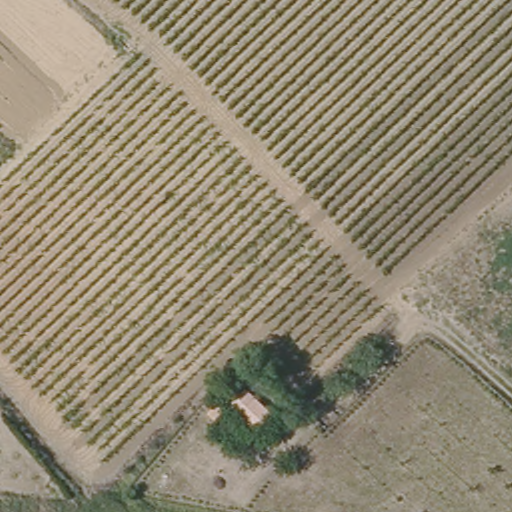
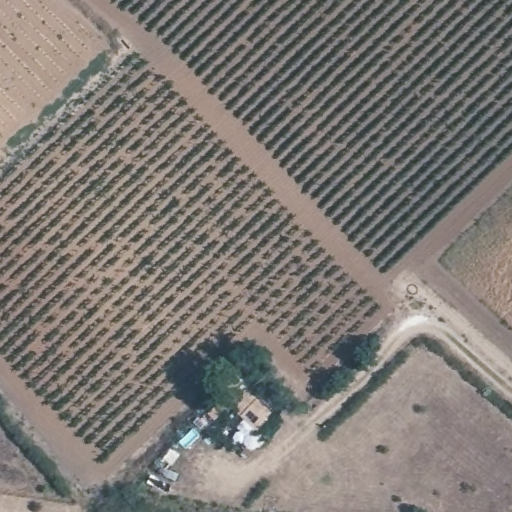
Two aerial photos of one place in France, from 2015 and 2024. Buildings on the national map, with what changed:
unchanged [(231,405),(246,388),(260,401),(244,417),(231,405)]
unchanged [(214,420),(224,409),(231,416),(221,426),(214,420)]

